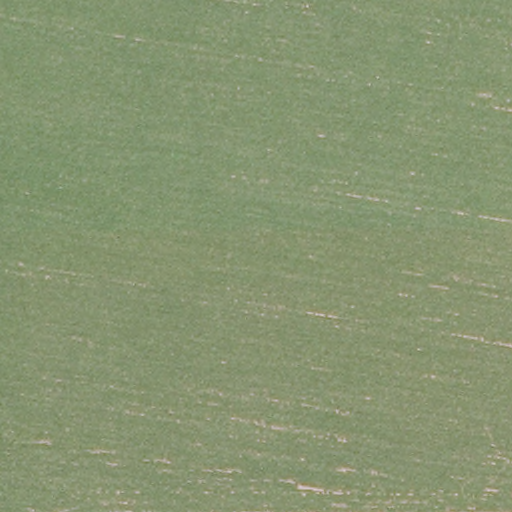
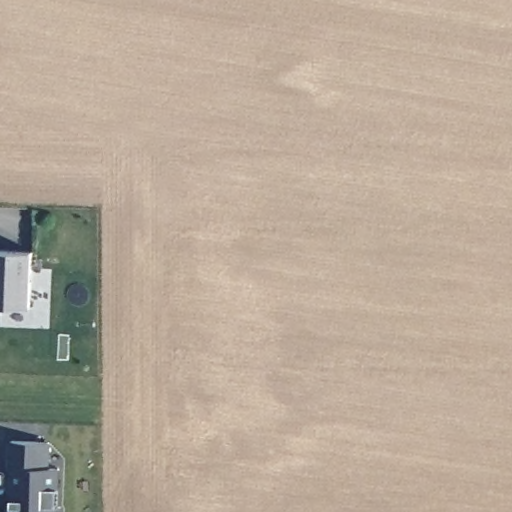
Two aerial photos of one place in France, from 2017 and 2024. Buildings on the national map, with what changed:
new [(31,250),(30,306),(0,306),(0,250),(31,250)]
new [(47,470),(58,470),(57,508),(58,508),(58,512),(10,512),(10,511),(12,511),(13,470),(10,470),(12,443),(48,444),(47,470)]

